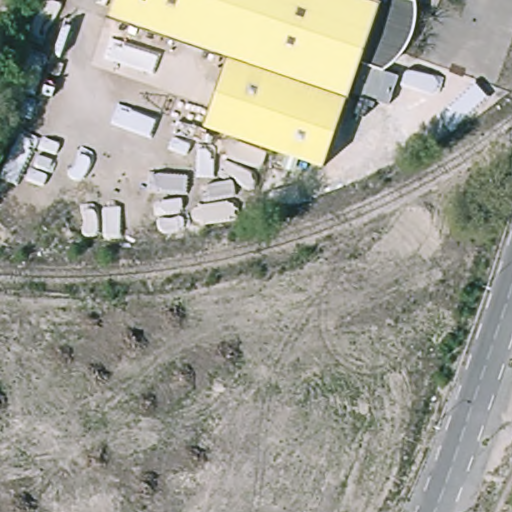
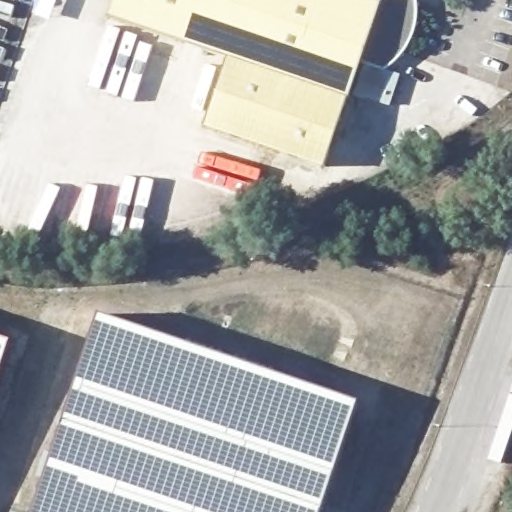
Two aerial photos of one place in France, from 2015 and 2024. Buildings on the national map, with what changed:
unchanged [(427,7),(428,16),(426,33),(422,43),(416,52),(405,61),(390,75),(365,69),(352,102),(237,63),(112,21),(119,0),(406,0),(427,7)]
unchanged [(352,102),(327,170),(211,130),(237,63),(352,102)]
new [(320,512),(34,512),(100,316),(357,404),(320,512)]
new [(0,372),(0,340),(10,343),(0,372)]

